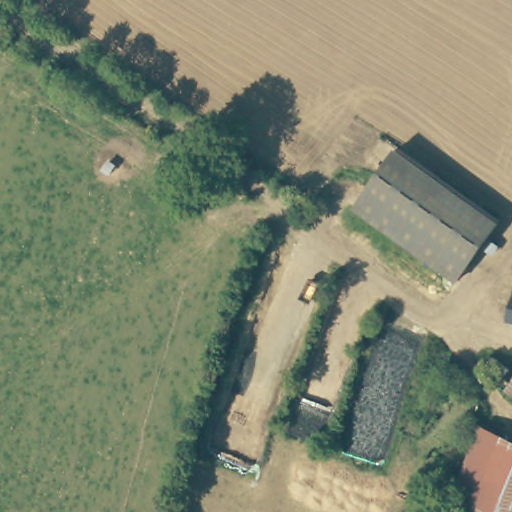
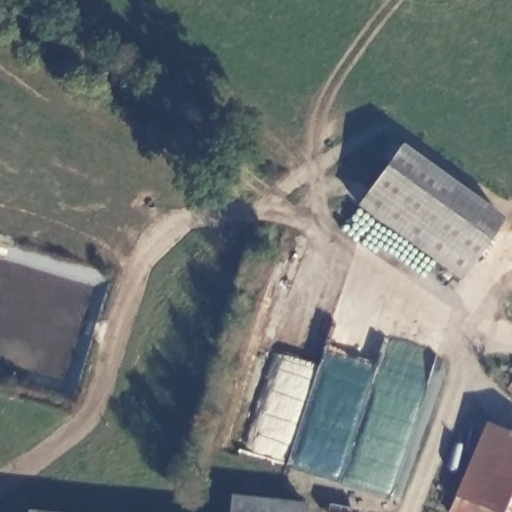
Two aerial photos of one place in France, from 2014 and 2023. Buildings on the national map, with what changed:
unchanged [(357,205),(399,147),(501,220),(459,279),(357,205)]
unchanged [(512,291),(512,320),(504,318),(512,291)]
unchanged [(512,392),(512,396),(510,394),(512,392)]
unchanged [(512,512),(458,512),(494,424),(512,431),(512,512)]
new [(228,494),(305,502),(304,512),(226,512),(228,494)]
new [(25,511),(35,512),(25,512),(25,511)]

